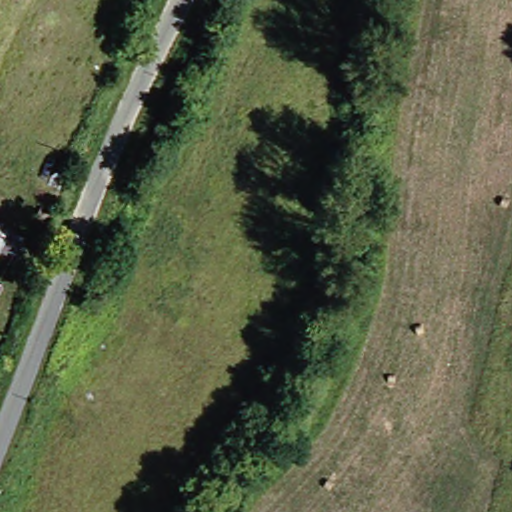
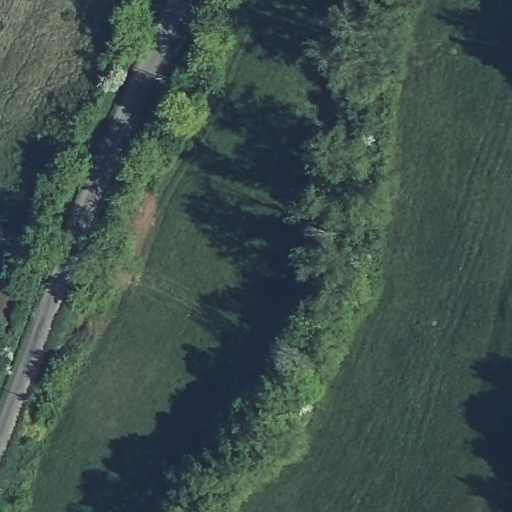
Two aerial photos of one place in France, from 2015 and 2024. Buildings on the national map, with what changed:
unchanged [(18,218),(0,256),(0,208),(18,218)]

